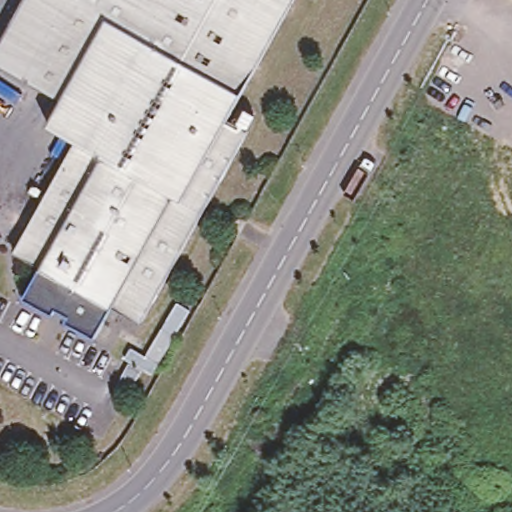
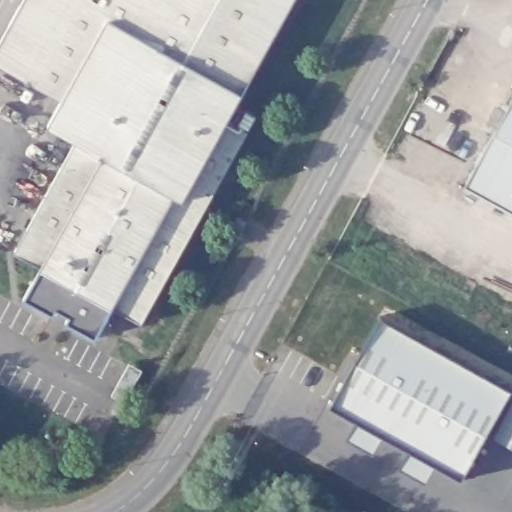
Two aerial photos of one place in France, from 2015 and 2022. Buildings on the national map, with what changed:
unchanged [(249,131),(142,324),(113,307),(97,336),(94,337),(69,323),(67,320),(70,316),(57,310),(55,313),(52,314),(27,300),(25,296),(40,267),(15,253),(76,141),(48,126),(62,99),(0,65),(0,47),(26,0),(296,0),(229,121),(249,131)]
new [(512,103),(512,213),(465,187),(512,103)]
unchanged [(238,237),(230,231),(240,217),(248,222),(238,237)]
new [(380,316),(512,390),(461,480),(330,406),(380,316)]

